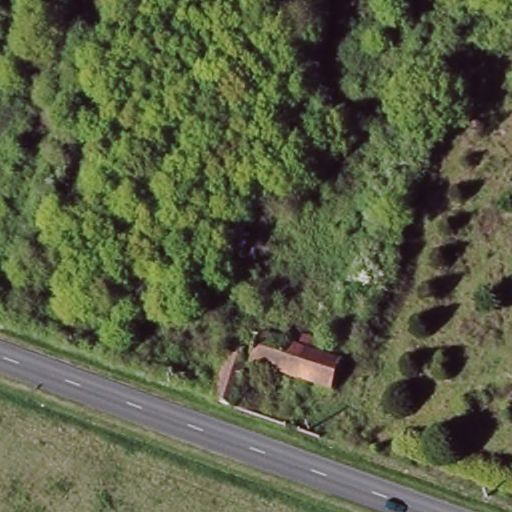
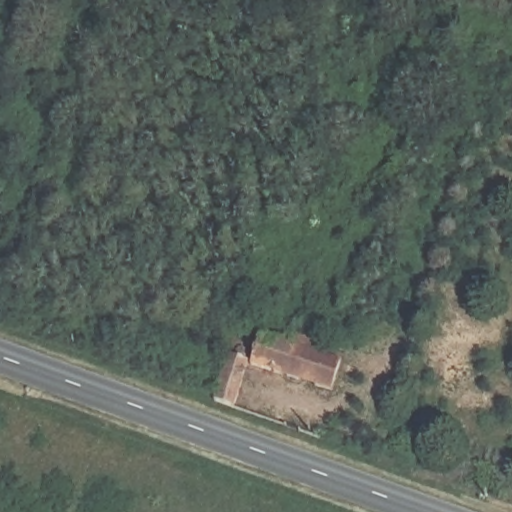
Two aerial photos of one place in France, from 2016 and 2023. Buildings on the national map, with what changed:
unchanged [(216,401),(231,356),(249,362),(253,362),(258,348),(246,344),(250,332),(287,345),(291,332),(326,345),(324,356),(342,363),(332,392),(249,365),(235,407),(216,401)]

